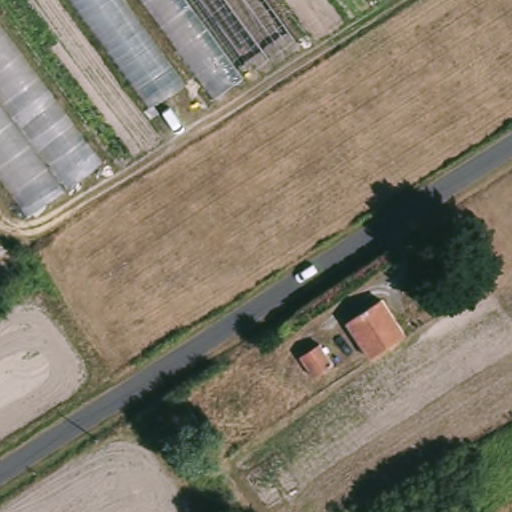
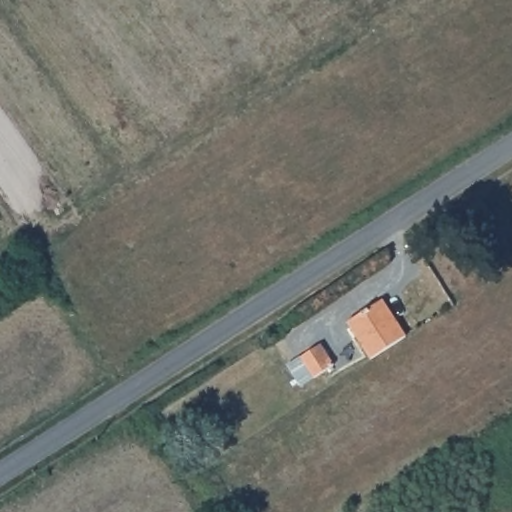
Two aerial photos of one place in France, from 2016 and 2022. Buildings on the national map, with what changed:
demolished [(164,138),(63,0),(123,0),(203,110),(164,138)]
demolished [(231,89),(217,102),(143,0),(207,0),(268,84),(239,97),(231,89)]
demolished [(309,57),(268,84),(207,0),(268,0),(309,57)]
demolished [(23,222),(0,191),(0,28),(101,164),(23,222)]
unchanged [(349,319),(377,301),(402,336),(373,355),(349,319)]
unchanged [(314,375),(300,355),(319,343),(332,362),(314,375)]

